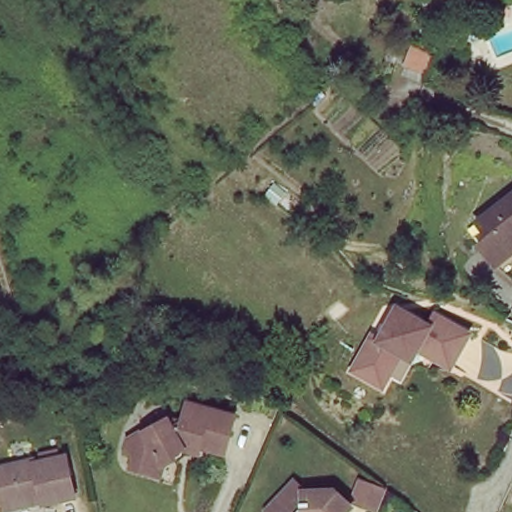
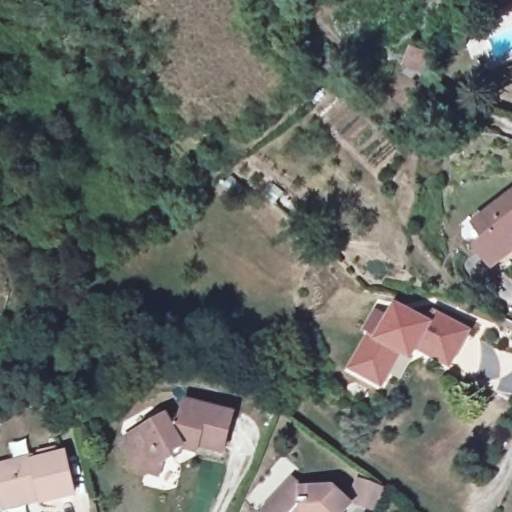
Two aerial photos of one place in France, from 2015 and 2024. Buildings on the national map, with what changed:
unchanged [(493,4),(486,0),(494,0),(493,4)]
unchanged [(512,190),(512,251),(500,263),(481,241),(490,232),(478,219),(512,190)]
unchanged [(453,367),(420,348),(404,352),(385,385),(356,368),(375,335),(383,339),(401,307),(433,325),(440,315),(473,334),(453,367)]
unchanged [(132,447),(126,446),(127,434),(166,414),(171,421),(183,416),(186,401),(236,410),(228,445),(203,440),(203,445),(188,443),(175,450),(175,456),(161,462),(160,470),(131,466),(132,447)]
unchanged [(0,493),(0,465),(66,451),(75,495),(43,501),(3,510),(1,499),(0,493)]
unchanged [(270,511),(270,498),(282,487),(292,497),(325,496),(339,512),(255,512),(270,511)]

